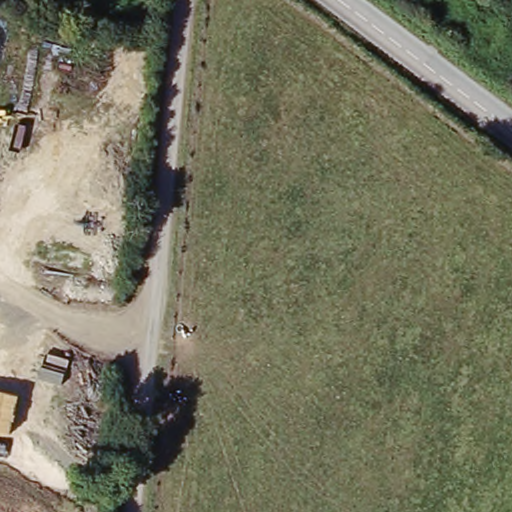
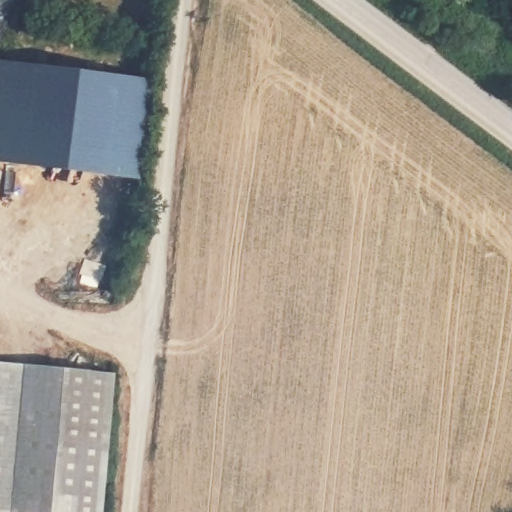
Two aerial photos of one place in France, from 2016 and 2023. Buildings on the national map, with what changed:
new [(139,175),(0,156),(0,55),(152,75),(139,175)]
new [(103,512),(35,512),(0,508),(0,358),(116,368),(103,512)]

